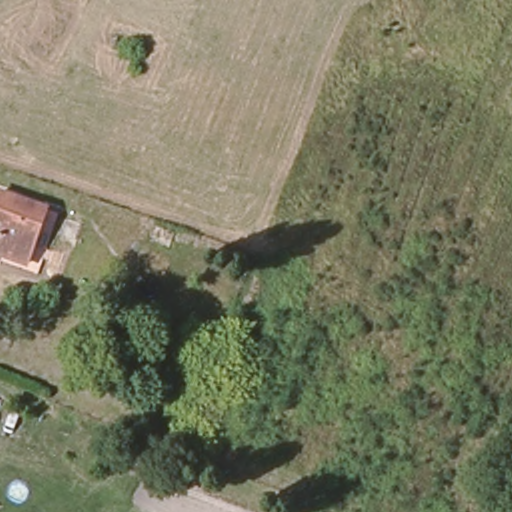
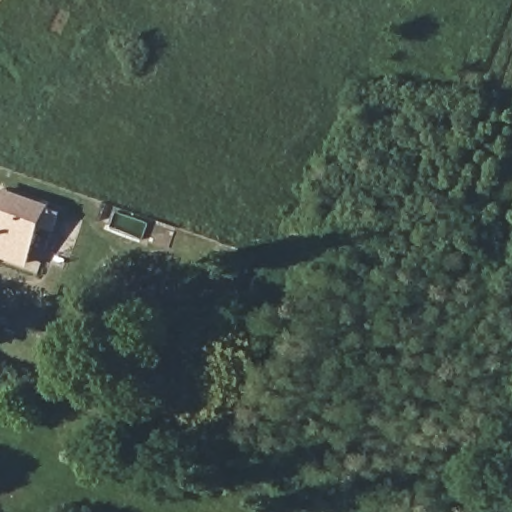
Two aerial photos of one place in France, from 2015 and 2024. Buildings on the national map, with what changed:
unchanged [(0,187),(50,203),(31,260),(0,248),(0,250),(0,187)]

